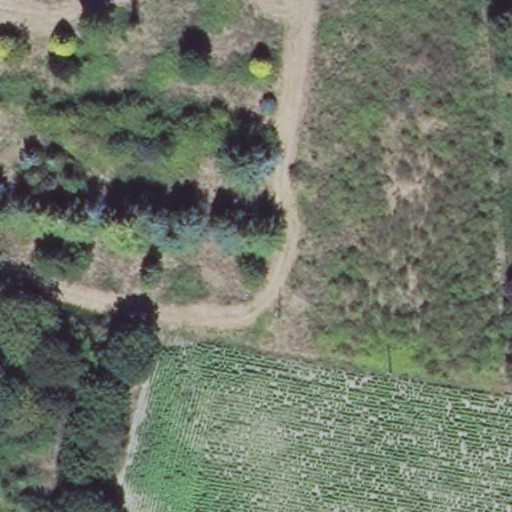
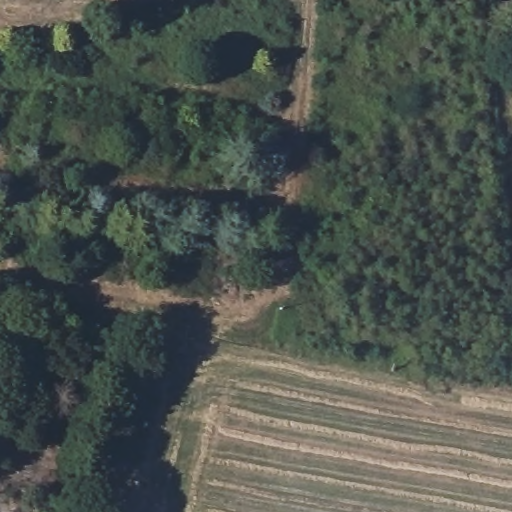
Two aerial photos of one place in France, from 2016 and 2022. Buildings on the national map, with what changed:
unchanged [(14,329),(0,327),(0,311),(17,314),(14,329)]

